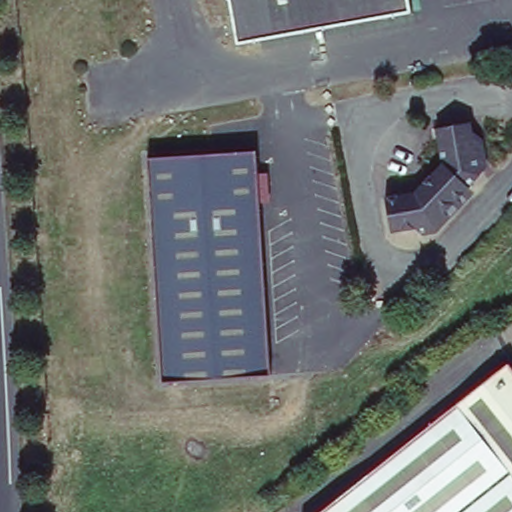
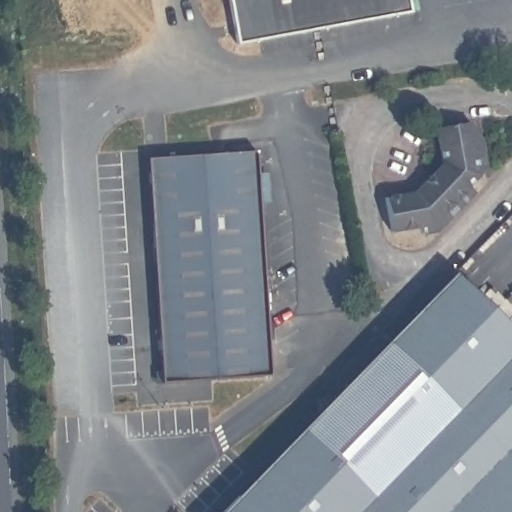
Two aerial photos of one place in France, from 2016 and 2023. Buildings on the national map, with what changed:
unchanged [(418,14),(249,54),(237,0),(415,0),(418,14)]
unchanged [(470,156),(477,157),(482,180),(437,231),(393,242),(385,211),(413,204),(445,170),(438,135),(465,129),(470,156)]
unchanged [(169,377),(149,156),(256,147),(276,370),(169,377)]
new [(223,512),(453,272),(512,330),(512,512),(223,512)]
demolished [(512,378),(512,444),(462,394),(500,363),(512,378)]
demolished [(512,444),(512,512),(321,512),(462,394),(512,444)]

